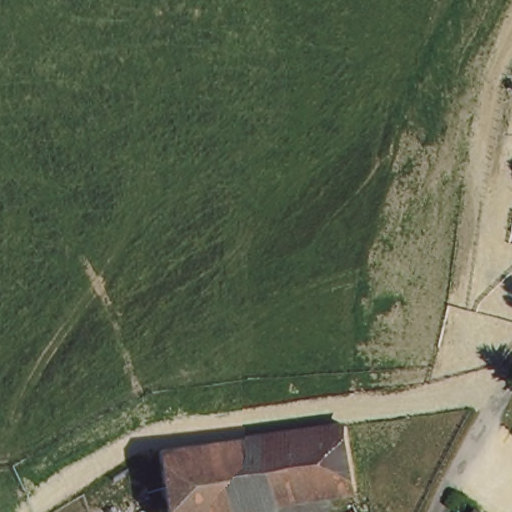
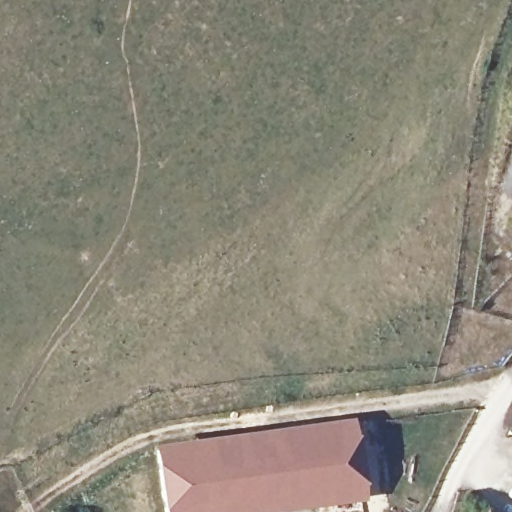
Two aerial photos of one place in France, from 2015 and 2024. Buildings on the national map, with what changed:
unchanged [(160,512),(161,444),(350,438),(349,512),(160,512)]

